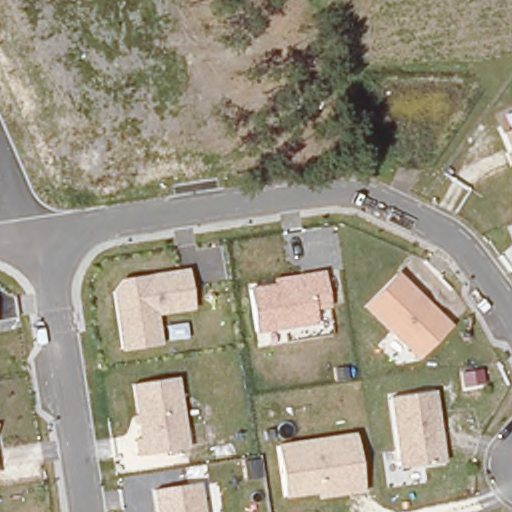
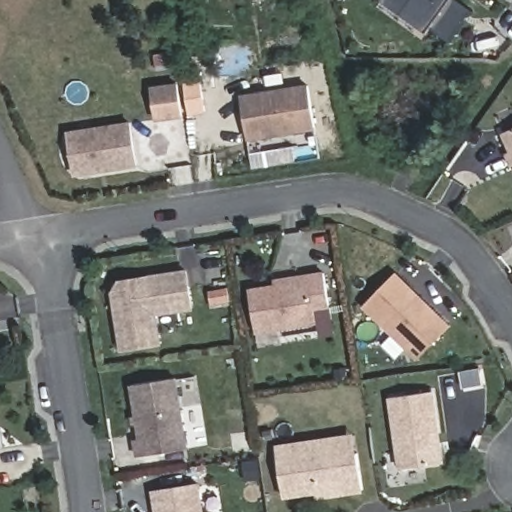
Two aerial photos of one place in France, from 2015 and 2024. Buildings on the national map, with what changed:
new [(452,41),(431,26),(427,32),(382,1),(383,0),(459,0),(473,10),(452,41)]
new [(179,83),(185,118),(156,121),(152,86),(179,83)]
new [(308,84),(316,130),(249,141),(242,94),(308,84)]
new [(138,168),(74,178),(67,131),(132,121),(138,168)]
unchanged [(512,129),(512,155),(502,134),(512,129)]
unchanged [(194,310),(157,316),(162,346),(119,353),(110,294),(119,279),(188,269),(194,310)]
unchanged [(331,307),(315,309),(318,324),(255,334),(248,288),(275,285),(273,277),(325,270),(331,307)]
unchanged [(418,360),(362,307),(397,271),(453,325),(418,360)]
unchanged [(189,449),(136,459),(132,439),(138,438),(129,386),(177,377),(189,449)]
unchanged [(447,462),(399,470),(387,397),(435,390),(447,462)]
unchanged [(1,424),(0,425),(0,424),(1,424)]
unchanged [(363,492),(317,500),(316,492),(284,497),(276,445),(353,433),(363,492)]
unchanged [(205,512),(157,512),(154,490),(201,483),(205,512)]

